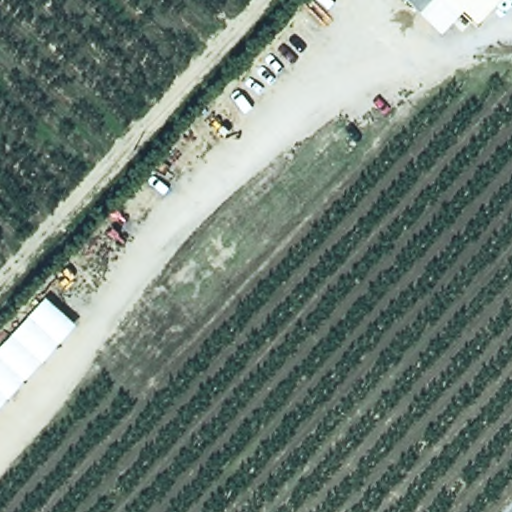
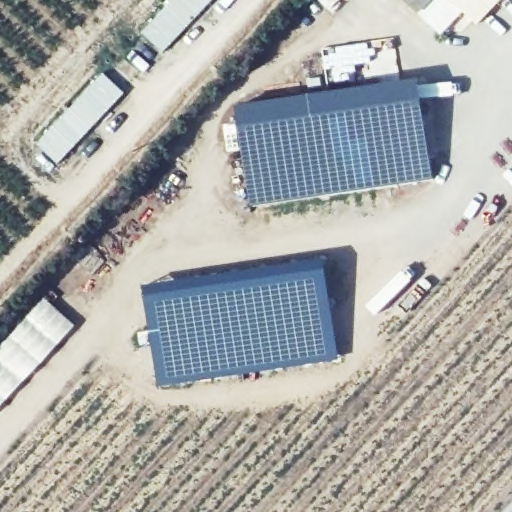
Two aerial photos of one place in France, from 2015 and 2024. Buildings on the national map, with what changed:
new [(141,33),(173,0),(212,0),(161,52),(141,33)]
unchanged [(405,0),(429,0),(418,11),(405,0)]
unchanged [(461,10),(439,32),(418,11),(429,0),(504,0),(479,27),(461,10)]
new [(57,164),(35,145),(103,74),(123,94),(57,164)]
new [(432,180),(249,206),(234,106),(418,79),(432,180)]
new [(228,281),(324,263),(339,360),(158,387),(149,329),(146,292),(228,281)]
unchanged [(76,327),(0,409),(0,347),(46,297),(76,327)]

